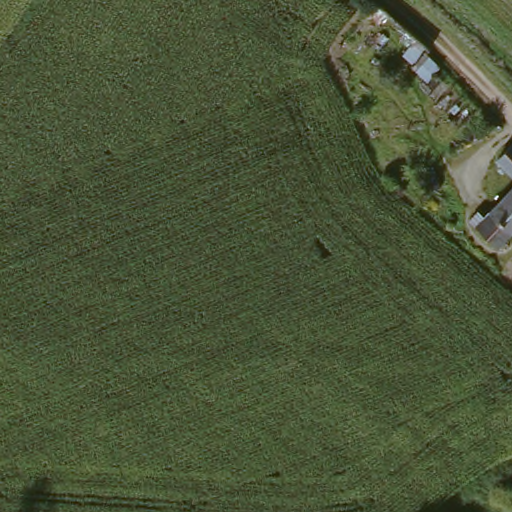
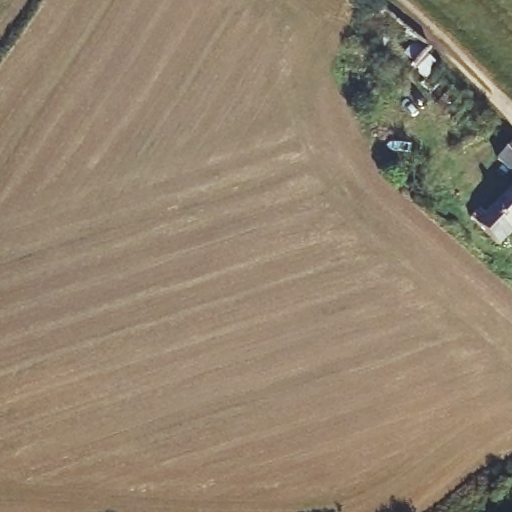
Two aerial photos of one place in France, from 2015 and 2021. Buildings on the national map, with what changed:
unchanged [(493,153),(512,134),(512,173),(493,153)]
unchanged [(498,242),(473,216),(481,208),(485,214),(512,185),(512,228),(498,242)]

